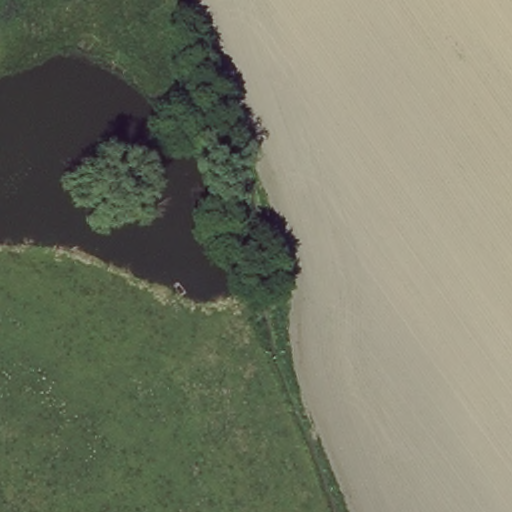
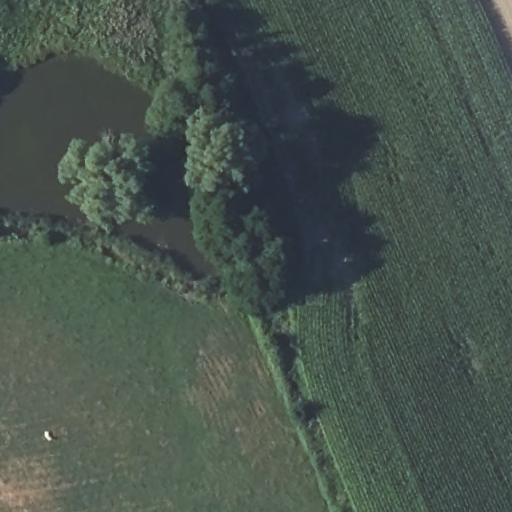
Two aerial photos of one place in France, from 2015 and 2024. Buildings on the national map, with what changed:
[]

